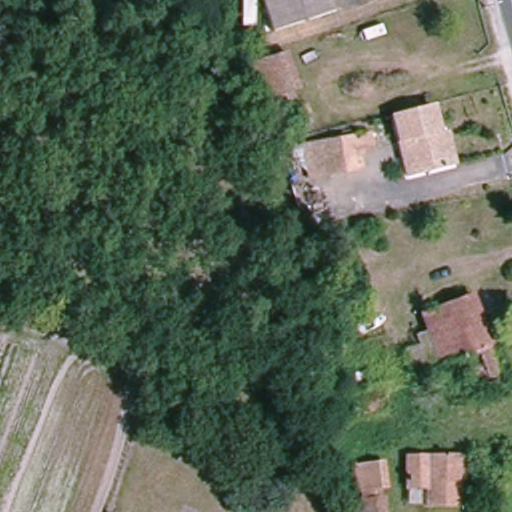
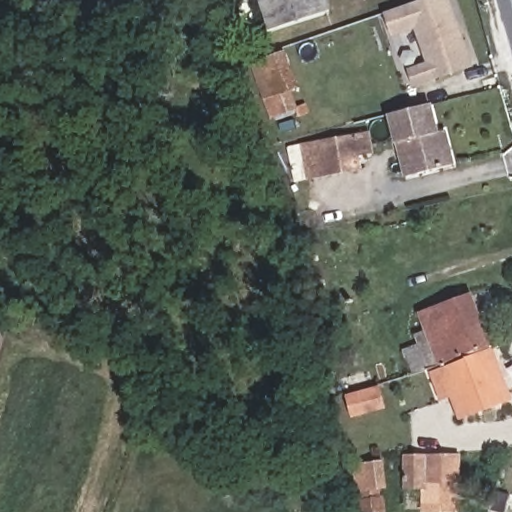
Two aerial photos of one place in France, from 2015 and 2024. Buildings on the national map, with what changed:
unchanged [(269,23),(263,0),(326,0),(328,7),(269,23)]
new [(415,87),(408,69),(427,62),(416,30),(395,37),(386,13),(423,0),(452,0),(475,68),(415,87)]
unchanged [(273,118),(267,95),(257,60),(291,51),(299,86),(291,89),(297,111),(273,118)]
unchanged [(443,145),(452,143),(457,167),(408,178),(392,114),(433,104),(443,145)]
unchanged [(374,153),(361,156),(363,171),(310,180),(304,147),(371,133),(374,153)]
unchanged [(472,389),(460,363),(442,370),(434,352),(423,356),(413,334),(424,330),(420,314),(472,292),(503,376),(472,389)]
new [(434,352),(442,370),(460,363),(472,389),(503,376),(512,396),(512,401),(461,420),(452,398),(441,401),(429,371),(413,376),(404,350),(418,345),(423,356),(434,352)]
unchanged [(351,418),(345,395),(382,385),(387,409),(351,418)]
unchanged [(457,507),(425,506),(426,491),(406,490),(405,456),(462,457),(457,507)]
unchanged [(387,488),(361,493),(353,466),(382,458),(387,488)]

